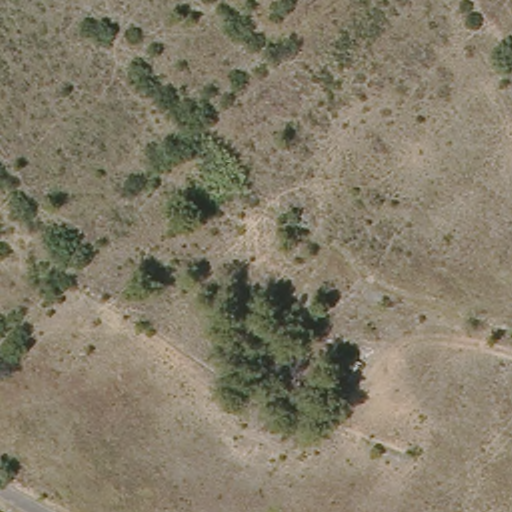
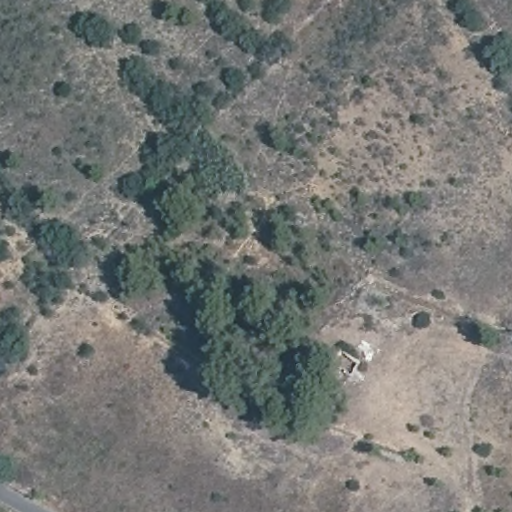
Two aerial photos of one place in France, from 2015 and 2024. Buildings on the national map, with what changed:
unchanged [(359,361),(346,380),(339,375),(334,383),(320,374),(339,346),(359,361)]

